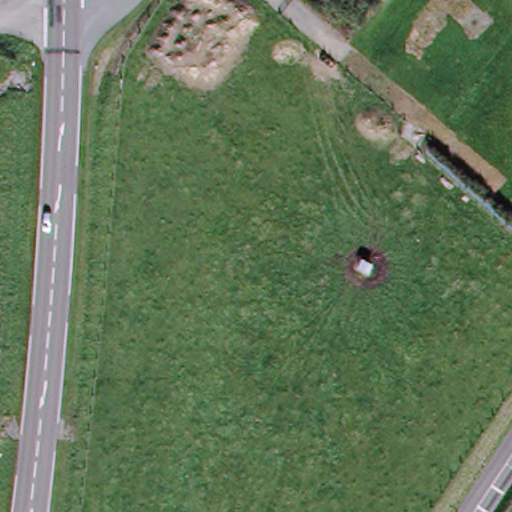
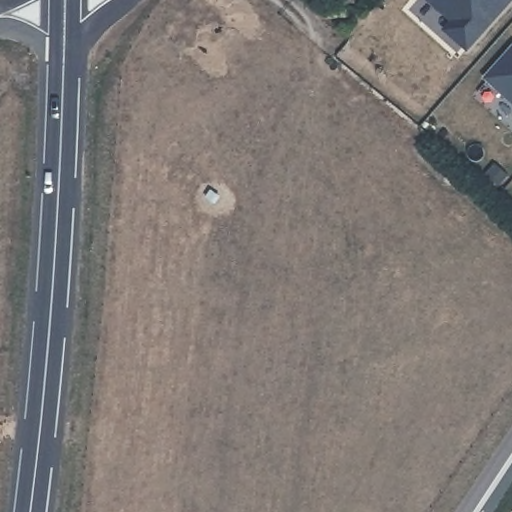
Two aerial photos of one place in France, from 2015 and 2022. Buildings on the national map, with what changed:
new [(512,1),(512,2),(467,54),(445,35),(452,27),(422,0),(511,0),(512,1)]
new [(512,53),(512,106),(486,83),(512,53)]

